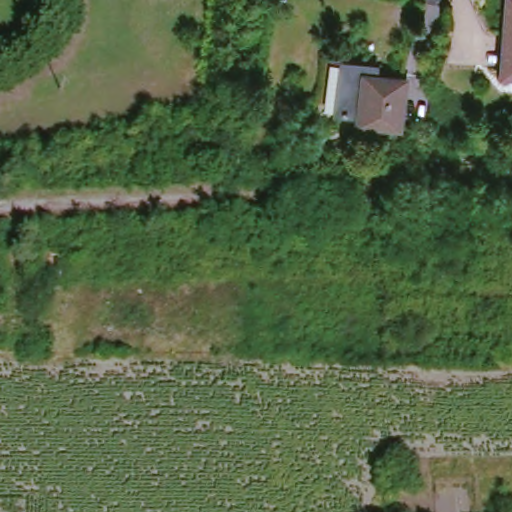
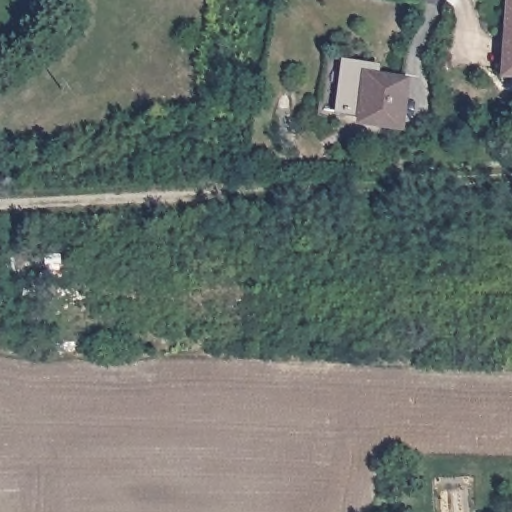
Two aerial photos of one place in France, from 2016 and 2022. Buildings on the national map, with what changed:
unchanged [(507,39),(501,39),(505,4),(512,5),(512,77),(505,76),(507,39)]
unchanged [(362,115),(337,111),(344,62),(370,65),(369,78),(404,83),(398,125),(361,120),(362,115)]
unchanged [(60,254),(60,276),(45,277),(43,255),(60,254)]

